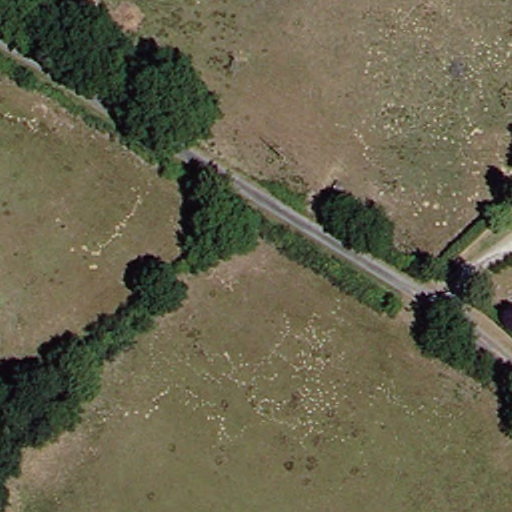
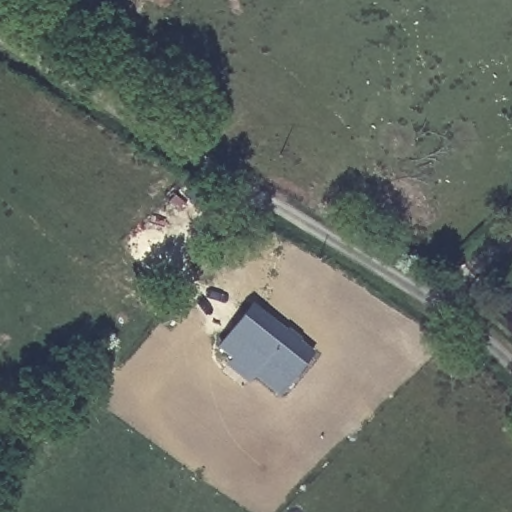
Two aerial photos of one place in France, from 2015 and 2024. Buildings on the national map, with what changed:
new [(223,346),(252,309),(309,353),(280,390),(223,346)]

